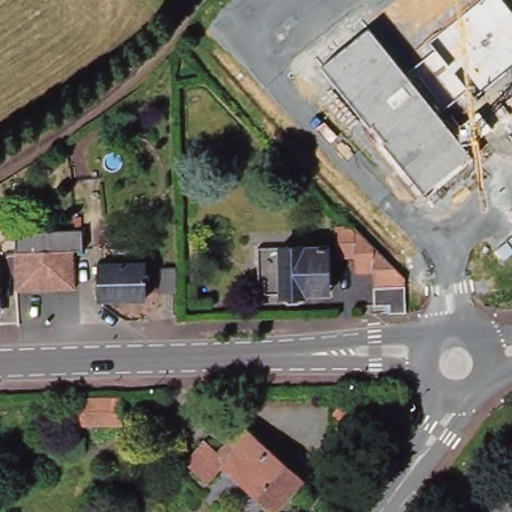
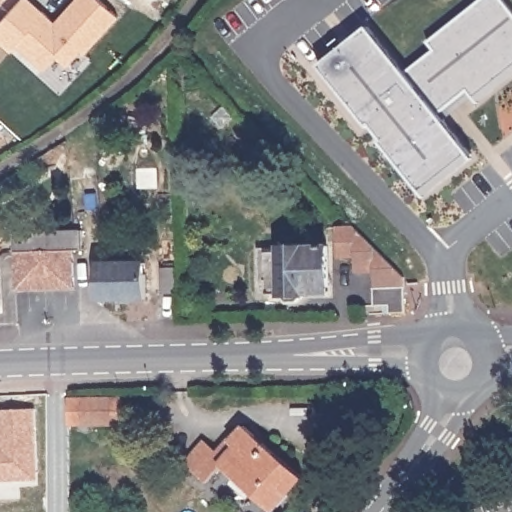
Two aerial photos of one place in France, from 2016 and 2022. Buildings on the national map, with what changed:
new [(0,6),(0,0),(6,0),(0,6)]
new [(73,0),(98,0),(116,17),(84,56),(79,52),(67,67),(56,57),(44,72),(16,47),(10,54),(0,44),(0,22),(20,0),(30,0),(54,21),(73,0)]
unchanged [(395,59),(475,0),(511,0),(512,1),(512,70),(445,126),(470,157),(426,192),(322,67),(369,29),(395,59)]
unchanged [(17,235),(75,232),(74,216),(83,216),(83,232),(86,232),(86,252),(77,252),(77,292),(19,295),(18,254),(17,235)]
unchanged [(377,308),(376,275),(359,275),(358,259),(339,260),(339,230),(358,230),(407,277),(407,284),(409,316),(393,316),(393,308),(377,308)]
unchanged [(332,297),(309,298),(300,306),(290,306),(283,299),(283,250),(331,250),(332,297)]
unchanged [(149,301),(87,302),(86,291),(102,290),(102,264),(116,263),(116,252),(148,252),(149,301)]
unchanged [(0,268),(3,302),(4,310),(0,310),(0,268)]
unchanged [(188,296),(175,296),(175,270),(187,270),(188,296)]
unchanged [(66,422),(66,397),(120,397),(120,422),(66,422)]
unchanged [(307,475),(279,510),(225,465),(212,481),(189,462),(208,440),(222,451),(234,437),(235,438),(247,425),(307,475)]

